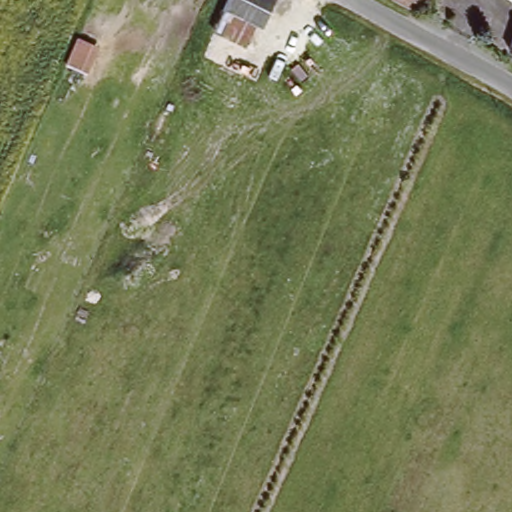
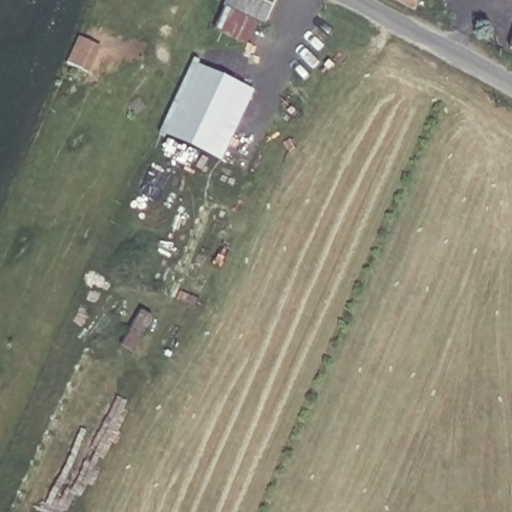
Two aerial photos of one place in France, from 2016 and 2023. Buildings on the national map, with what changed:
unchanged [(223,0),(273,0),(261,27),(253,23),(220,7),(223,0)]
unchanged [(415,12),(393,0),(418,0),(415,12)]
unchanged [(253,23),(241,48),(208,31),(220,7),(253,23)]
unchanged [(78,34),(101,45),(88,71),(66,64),(78,34)]
unchanged [(512,35),(512,54),(507,52),(512,35)]
new [(198,65),(255,91),(221,163),(164,135),(198,65)]

